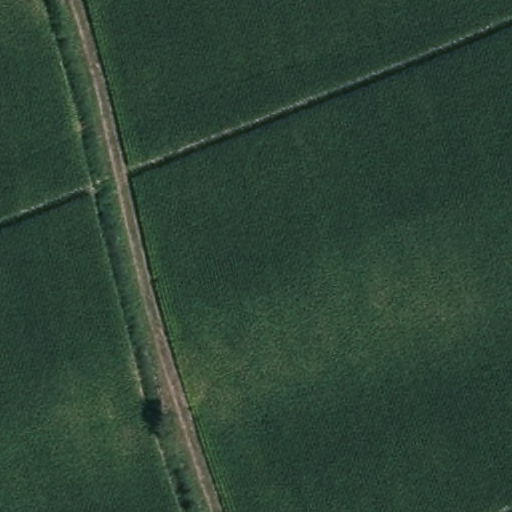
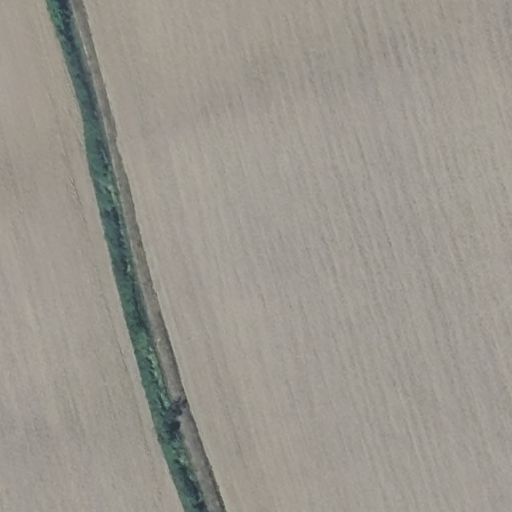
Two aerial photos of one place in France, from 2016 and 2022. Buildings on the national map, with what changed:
[]

